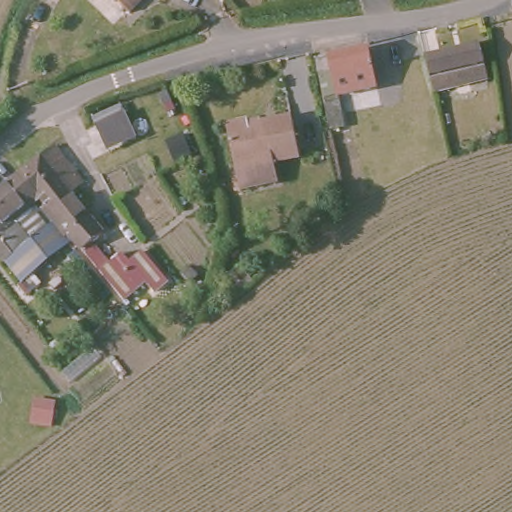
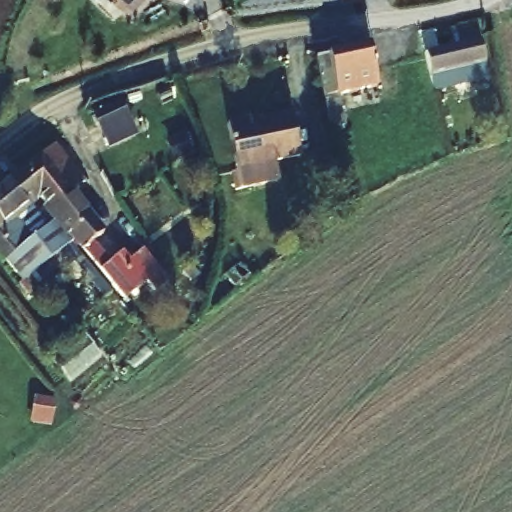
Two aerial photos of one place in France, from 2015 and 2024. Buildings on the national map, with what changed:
unchanged [(122,0),(144,0),(132,11),(122,0)]
unchanged [(482,40),(490,75),(460,82),(462,89),(441,93),(432,52),(482,40)]
unchanged [(320,62),(375,49),(382,88),(342,97),(347,125),(333,129),(320,62)]
unchanged [(235,168),(227,124),(246,119),(247,125),(292,115),(300,155),(235,168)]
unchanged [(115,254),(128,245),(136,253),(149,245),(164,264),(130,291),(53,197),(49,200),(26,216),(37,230),(53,217),(71,238),(27,273),(0,242),(0,184),(22,166),(26,163),(38,154),(60,139),(87,173),(72,183),(94,209),(107,225),(97,232),(115,254)]

